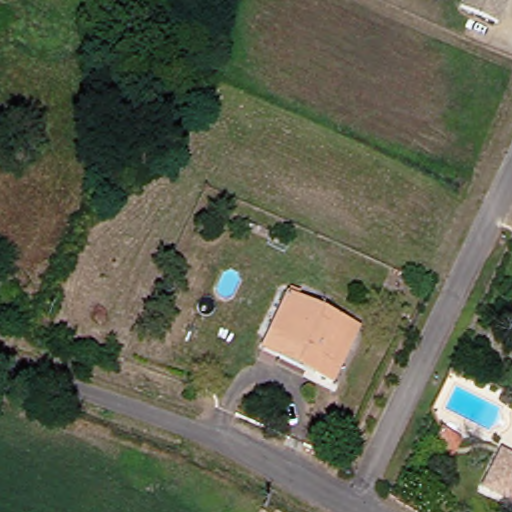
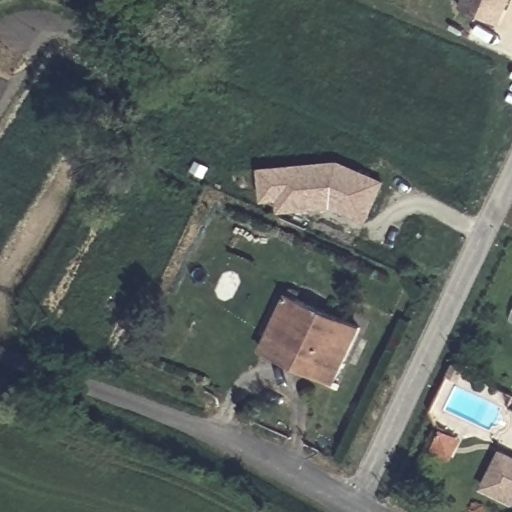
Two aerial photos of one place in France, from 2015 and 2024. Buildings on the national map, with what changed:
unchanged [(496,27),(459,12),(464,0),(508,0),(496,27)]
new [(275,204),(258,204),(256,170),(336,164),(383,185),(366,227),(332,212),(278,214),(275,204)]
unchanged [(262,333),(282,292),(352,327),(325,381),(307,372),(255,346),(262,333)]
unchanged [(510,500),(478,483),(494,449),(512,457),(512,495),(510,500)]

